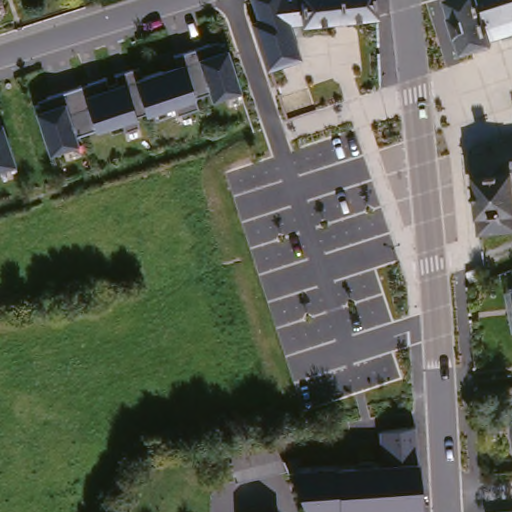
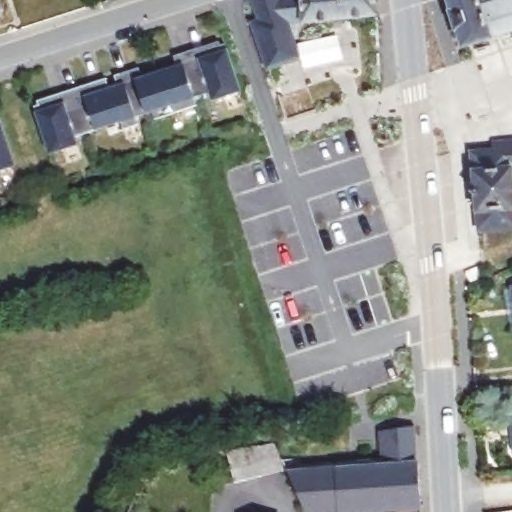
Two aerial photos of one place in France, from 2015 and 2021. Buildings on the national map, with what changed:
unchanged [(295,16),(282,17),(293,53),(262,63),(249,18),(255,16),(250,0),(370,0),(371,10),(295,17),(295,16)]
unchanged [(488,34),(489,35),(460,43),(454,26),(452,27),(447,9),(450,8),(447,0),(512,0),(512,27),(488,34)]
unchanged [(0,10),(0,3),(2,7),(0,10)]
unchanged [(41,105),(50,102),(49,97),(51,97),(83,86),(84,88),(90,86),(89,84),(107,79),(110,89),(119,86),(116,76),(134,70),(137,80),(162,72),(164,76),(180,71),(175,57),(210,45),(212,49),(221,46),(226,44),(241,92),(212,101),(210,94),(195,99),(197,106),(155,120),(152,112),(136,118),(139,125),(112,134),(110,126),(76,137),(79,145),(51,154),(35,106),(41,105)]
unchanged [(0,175),(0,128),(14,171),(0,175)]
unchanged [(490,146),(489,138),(512,137),(512,166),(506,166),(511,222),(474,226),(467,148),(490,146)]
unchanged [(511,453),(507,423),(512,423),(512,453),(511,453)]
unchanged [(305,512),(287,471),(381,462),(375,430),(413,427),(417,461),(422,509),(377,512),(305,512)]
unchanged [(272,444),(285,469),(234,483),(225,452),(272,444)]

